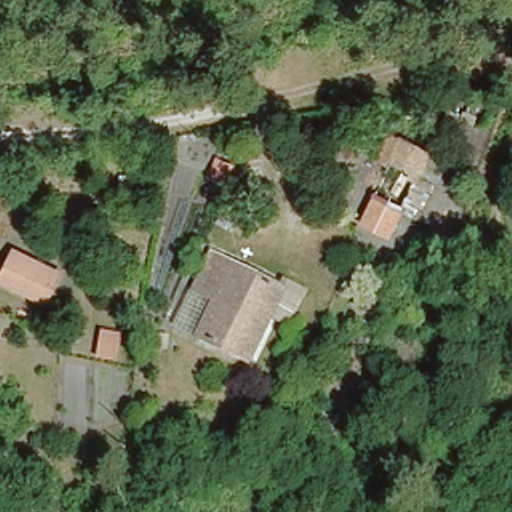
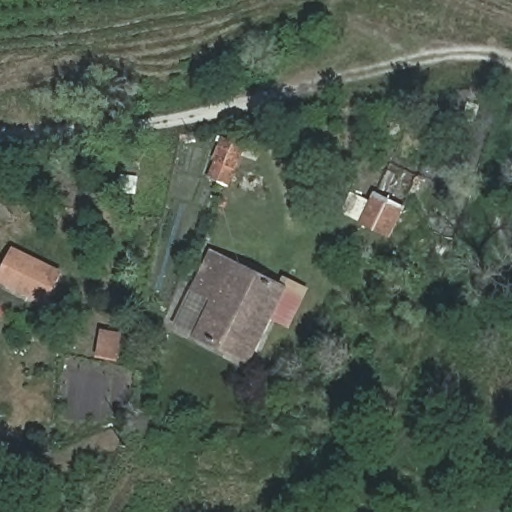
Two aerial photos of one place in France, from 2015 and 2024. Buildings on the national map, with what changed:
unchanged [(407,216),(370,199),(407,122),(443,140),(407,216)]
unchanged [(237,165),(227,188),(206,179),(217,156),(237,165)]
unchanged [(308,215),(280,202),(285,189),(313,204),(308,215)]
unchanged [(62,272),(42,305),(0,285),(0,274),(14,247),(62,272)]
unchanged [(252,363),(200,337),(214,300),(196,292),(212,253),(285,287),(252,363)]
unchanged [(100,330),(122,335),(115,362),(93,358),(100,330)]
unchanged [(189,461),(190,423),(206,424),(207,462),(189,461)]
unchanged [(152,501),(154,477),(168,477),(167,501),(152,501)]

